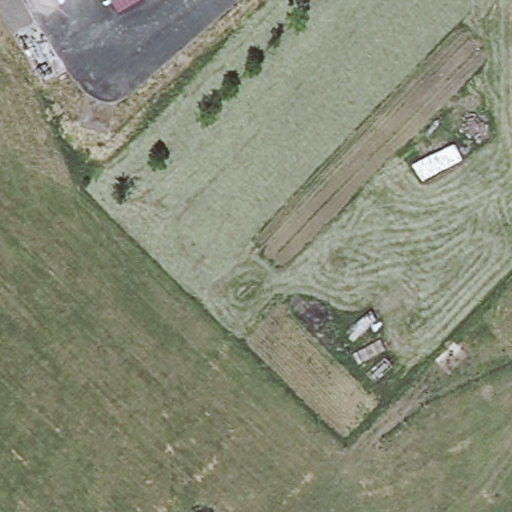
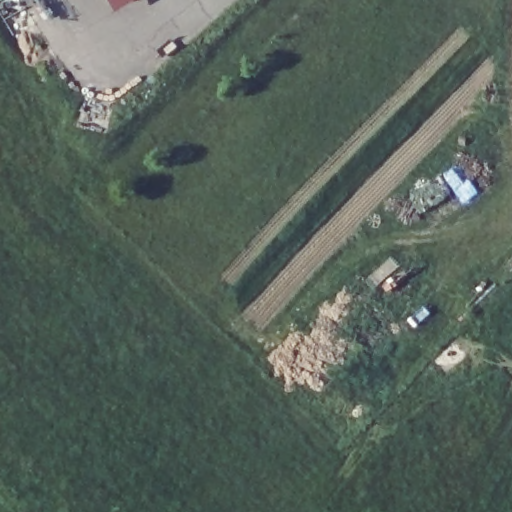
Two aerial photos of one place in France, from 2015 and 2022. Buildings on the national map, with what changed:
unchanged [(108,0),(137,0),(114,13),(108,0)]

